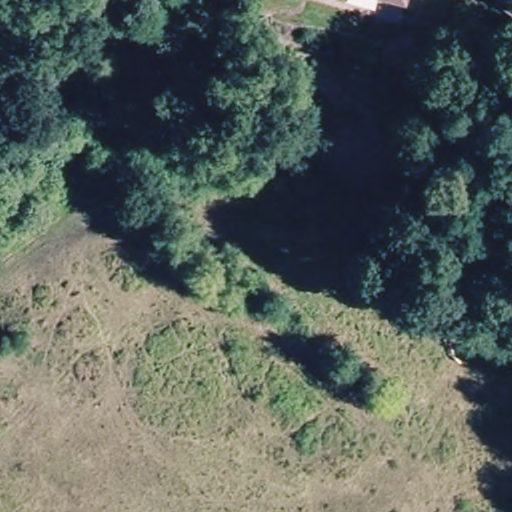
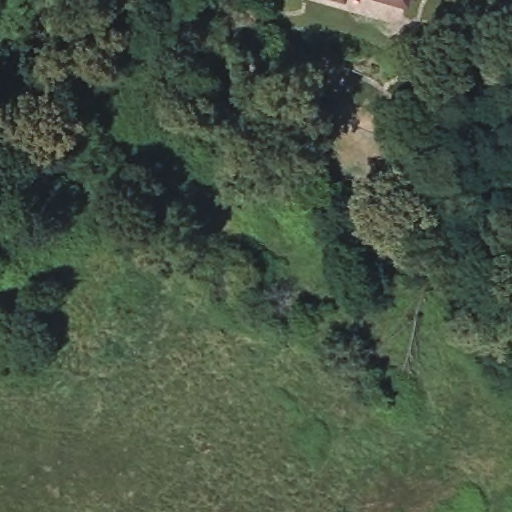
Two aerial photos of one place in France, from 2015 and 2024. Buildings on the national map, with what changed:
unchanged [(394,0),(402,0),(401,3),(394,0)]
unchanged [(512,0),(512,13),(497,0),(512,0)]

